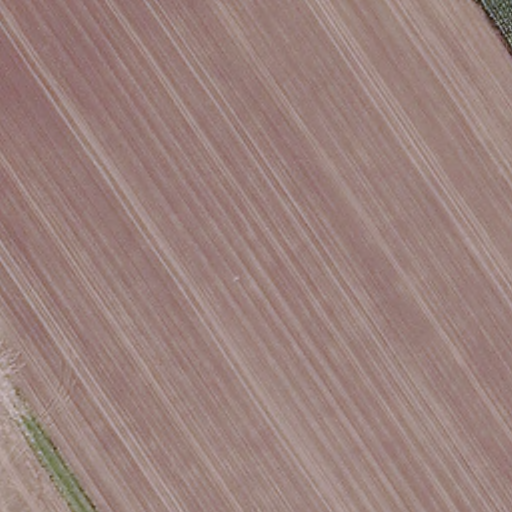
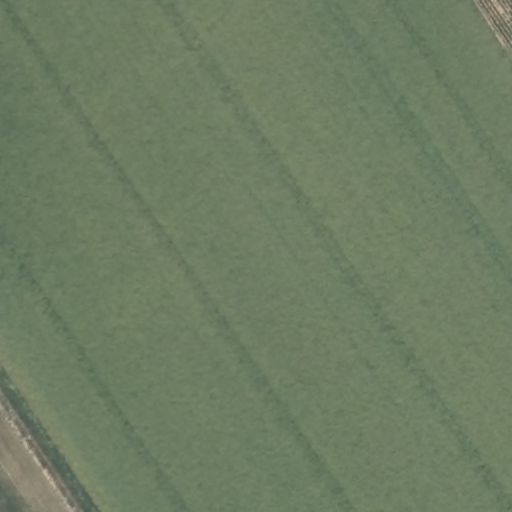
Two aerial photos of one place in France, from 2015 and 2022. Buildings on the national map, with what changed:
[]

